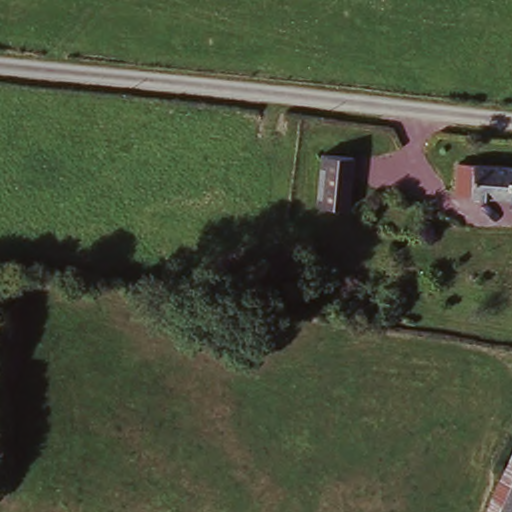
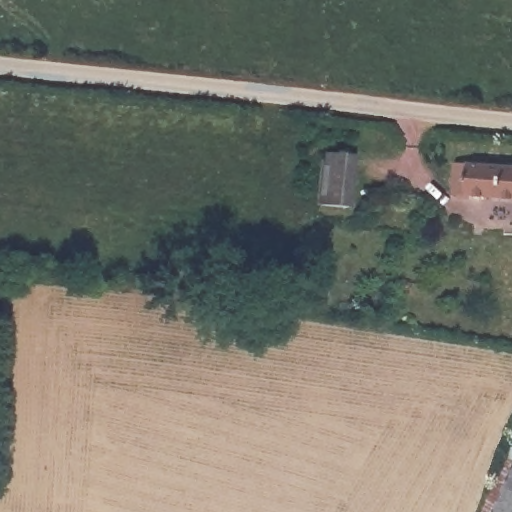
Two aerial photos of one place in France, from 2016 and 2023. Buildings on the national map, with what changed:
unchanged [(354,158),(348,209),(318,206),(322,155),(354,158)]
unchanged [(512,173),(512,203),(456,200),(458,170),(512,173)]
unchanged [(510,451),(512,452),(512,512),(482,512),(510,451)]

